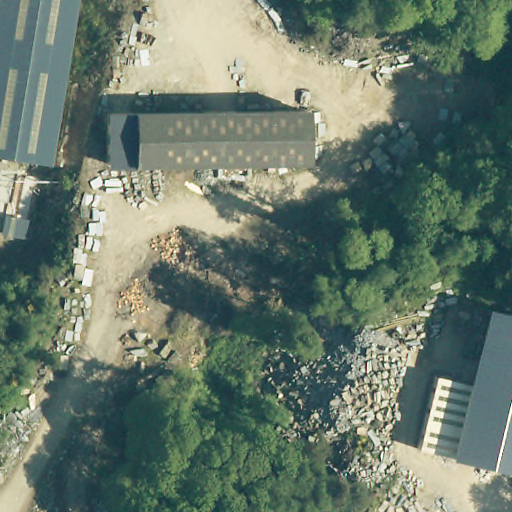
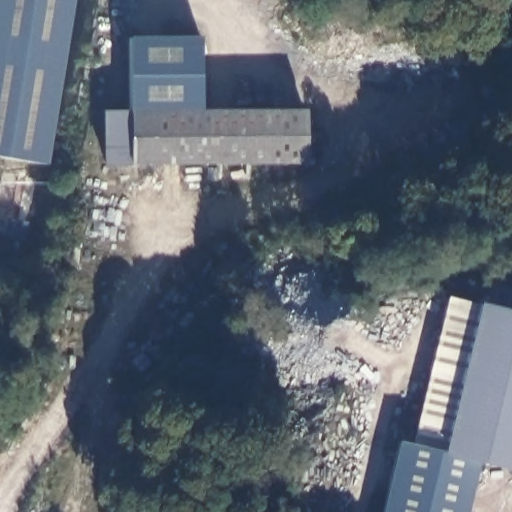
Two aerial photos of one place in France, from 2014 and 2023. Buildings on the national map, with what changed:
unchanged [(48,166),(0,159),(0,0),(73,0),(48,166)]
new [(203,113),(131,114),(131,38),(202,36),(203,113)]
unchanged [(114,114),(125,114),(315,110),(316,160),(283,161),(115,164),(114,114)]
unchanged [(512,311),(512,471),(443,454),(410,445),(446,297),(479,303),(512,311)]
new [(379,512),(396,442),(410,445),(443,454),(475,462),(464,512),(379,512)]

